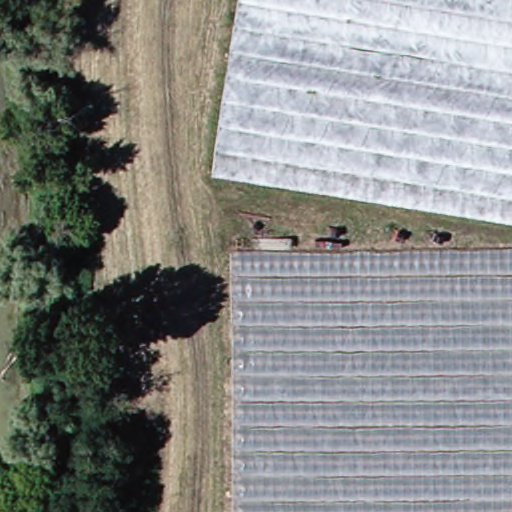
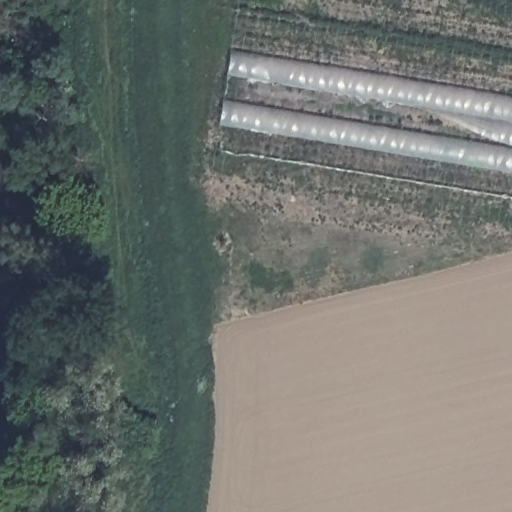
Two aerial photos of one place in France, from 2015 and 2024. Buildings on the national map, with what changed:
unchanged [(512,0),(512,217),(214,170),(241,0),(512,0)]
demolished [(231,250),(512,248),(512,512),(235,512),(231,250)]

